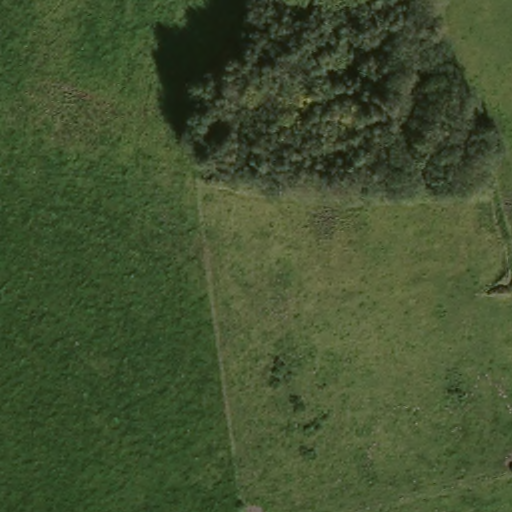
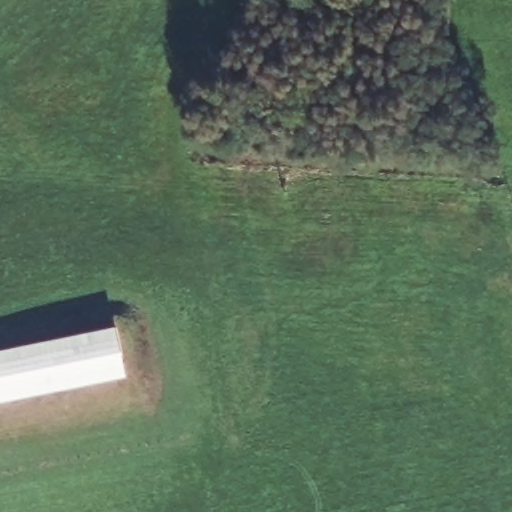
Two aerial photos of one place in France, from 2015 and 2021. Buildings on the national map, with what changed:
new [(126,375),(0,400),(0,352),(116,330),(126,375)]

